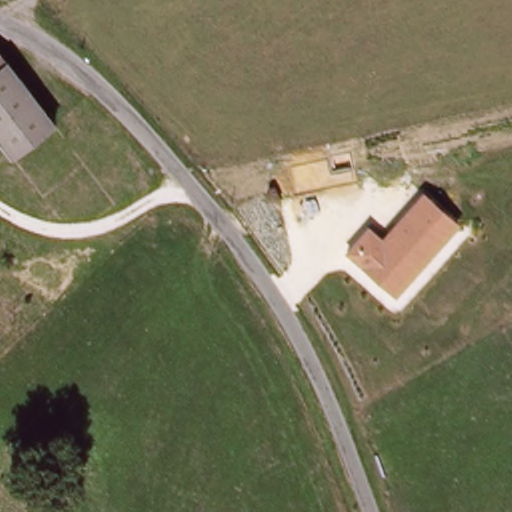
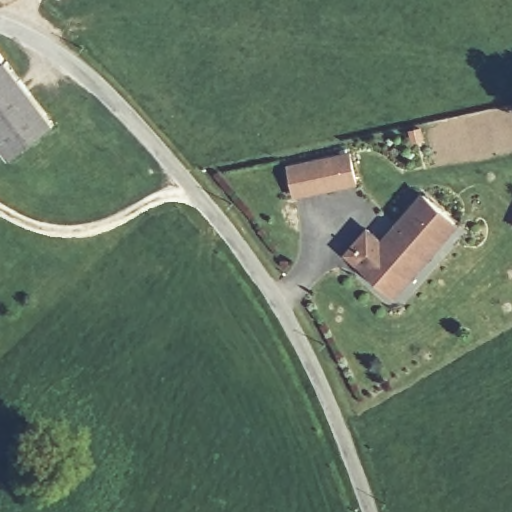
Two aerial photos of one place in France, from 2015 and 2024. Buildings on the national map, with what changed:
unchanged [(12,151),(0,136),(0,53),(52,120),(12,151)]
demolished [(0,159),(0,136),(12,151),(0,159)]
new [(359,184),(295,198),(287,164),(352,151),(359,184)]
unchanged [(460,222),(396,296),(345,253),(367,225),(383,237),(422,190),(460,222)]

